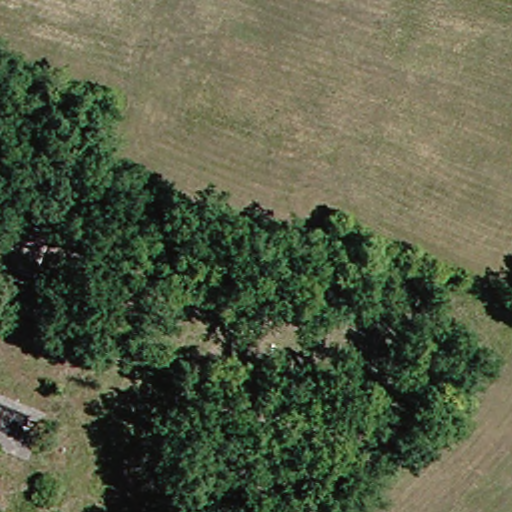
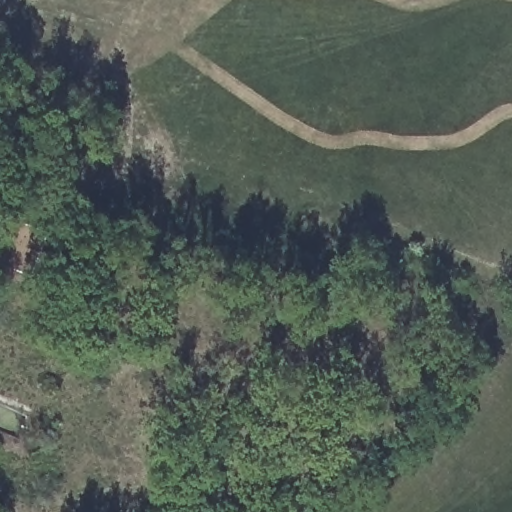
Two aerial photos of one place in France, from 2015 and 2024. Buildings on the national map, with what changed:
unchanged [(0,261),(0,244),(8,224),(17,229),(21,223),(47,233),(35,274),(0,261)]

